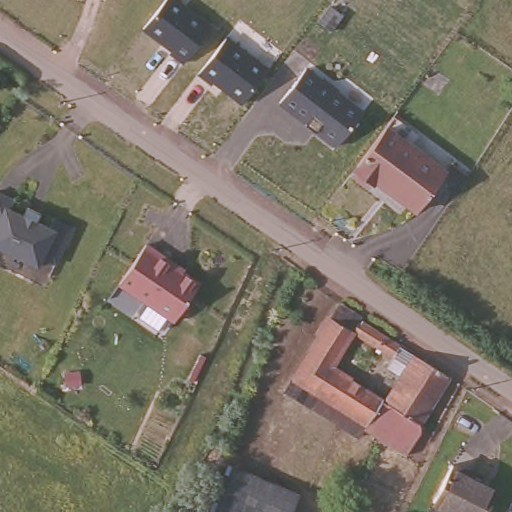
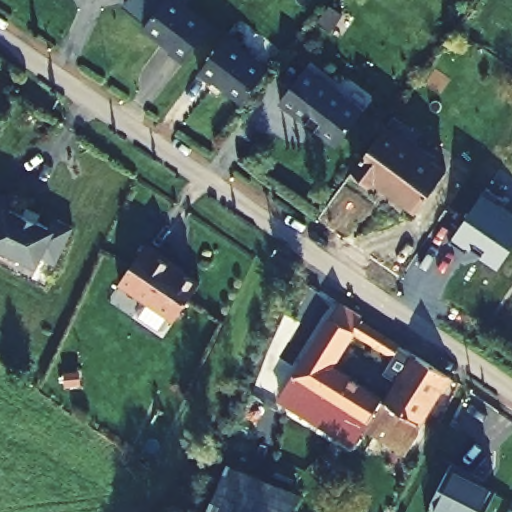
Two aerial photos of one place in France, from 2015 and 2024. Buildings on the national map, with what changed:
new [(127,0),(164,0),(148,21),(125,3),(127,0)]
unchanged [(184,64),(144,30),(167,0),(178,0),(212,29),(184,64)]
unchanged [(271,70),(243,107),(200,75),(227,37),(271,70)]
unchanged [(364,111),(337,146),(278,103),(306,66),(364,111)]
unchanged [(417,211),(376,180),(372,185),(353,171),(385,128),(445,174),(417,211)]
new [(486,189),(504,200),(503,202),(512,209),(512,249),(499,270),(481,257),(483,253),(473,245),(470,252),(452,240),(486,189)]
unchanged [(9,196),(5,205),(52,229),(56,220),(71,227),(53,264),(40,256),(35,265),(0,248),(0,192),(9,196)]
unchanged [(118,282),(145,244),(159,254),(157,255),(198,285),(172,321),(118,282)]
unchanged [(423,413),(426,415),(427,417),(427,420),(411,444),(371,418),(366,426),(291,380),(326,321),(346,293),(366,310),(454,366),(423,413)]
unchanged [(290,512),(207,512),(228,465),(299,493),(290,512)]
unchanged [(492,512),(455,512),(439,503),(458,466),(479,477),(476,482),(501,495),(492,512)]

